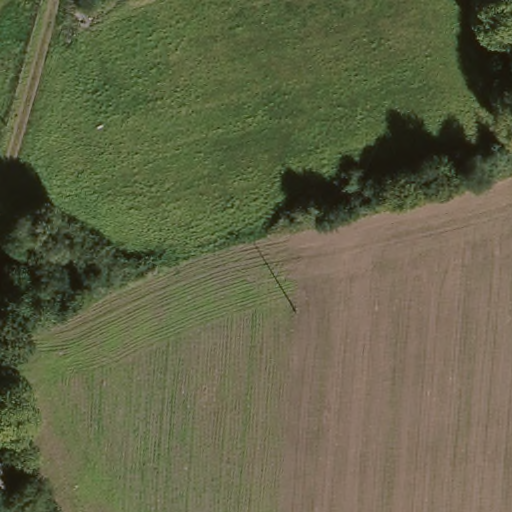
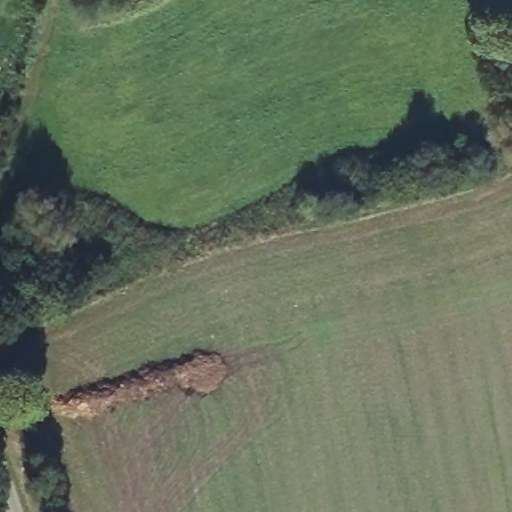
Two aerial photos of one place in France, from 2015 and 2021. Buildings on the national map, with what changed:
[]

